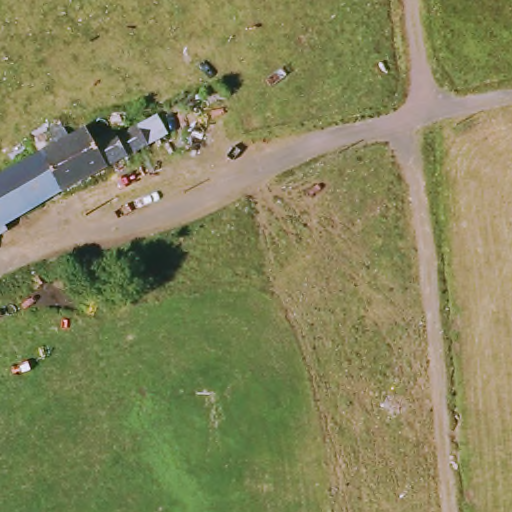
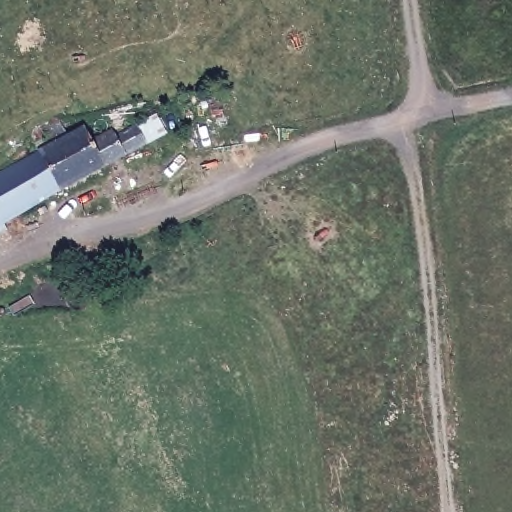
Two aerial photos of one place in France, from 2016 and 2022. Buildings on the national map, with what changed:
unchanged [(47,151),(38,138),(67,122),(80,136),(91,128),(102,142),(130,126),(136,132),(162,116),(176,136),(74,194),(47,151)]
unchanged [(47,151),(74,194),(20,224),(12,237),(2,243),(5,249),(0,251),(0,178),(47,151)]

